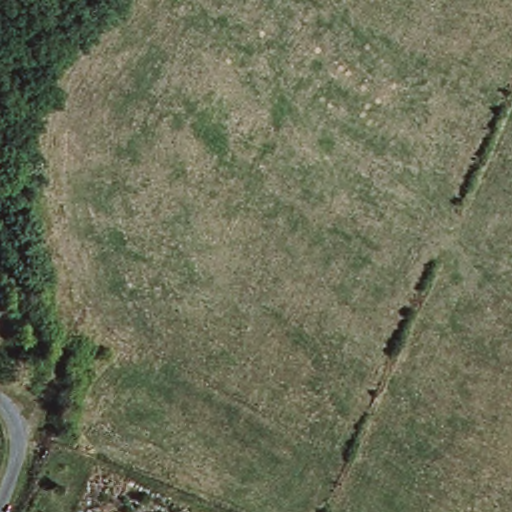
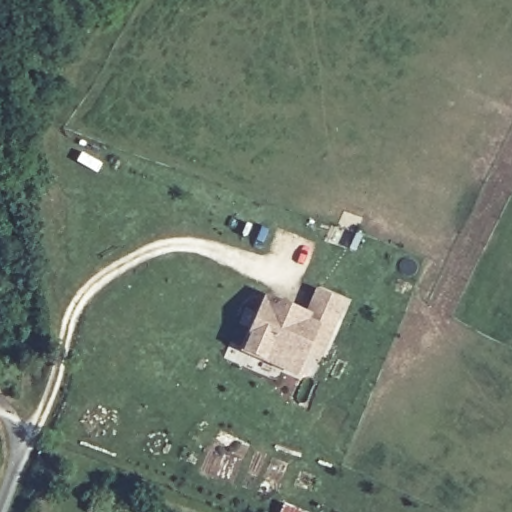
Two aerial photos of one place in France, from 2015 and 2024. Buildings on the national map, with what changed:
new [(307,311),(316,290),(346,303),(325,359),(310,354),(300,376),(240,352),(264,294),(307,311)]

